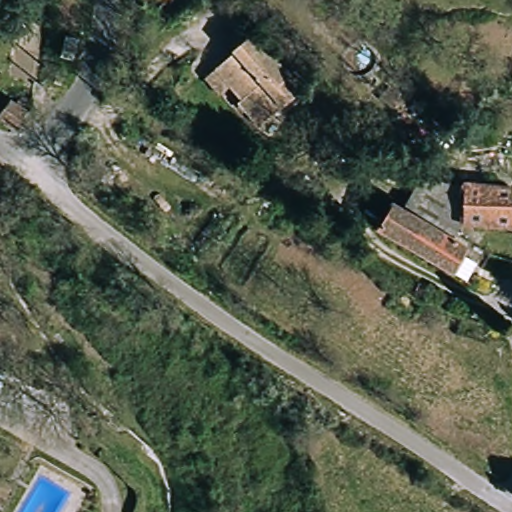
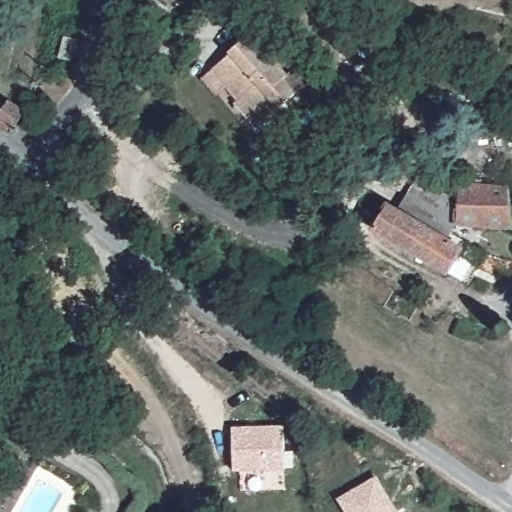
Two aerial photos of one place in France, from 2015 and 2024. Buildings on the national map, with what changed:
unchanged [(305,87),(265,126),(212,71),(252,33),(305,87)]
unchanged [(71,59),(57,56),(61,37),(75,40),(71,59)]
unchanged [(16,131),(0,120),(0,112),(10,99),(28,110),(16,131)]
unchanged [(390,202),(405,210),(418,180),(508,186),(512,212),(512,230),(461,226),(453,238),(466,246),(449,279),(376,232),(390,202)]
new [(233,471),(232,426),(282,425),(283,469),(233,471)]
new [(337,498),(376,475),(398,512),(346,512),(337,498)]

